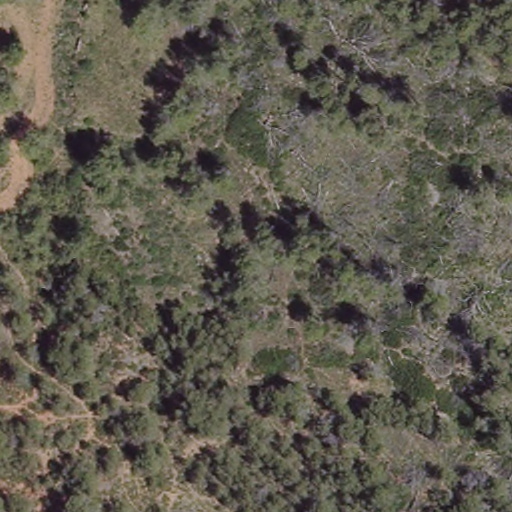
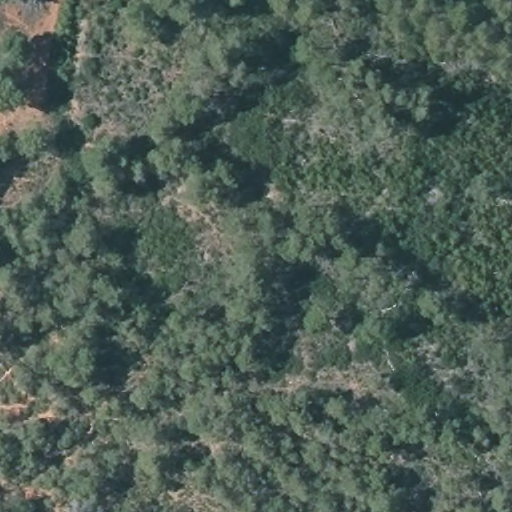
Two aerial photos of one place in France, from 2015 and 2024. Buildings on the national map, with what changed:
[]

